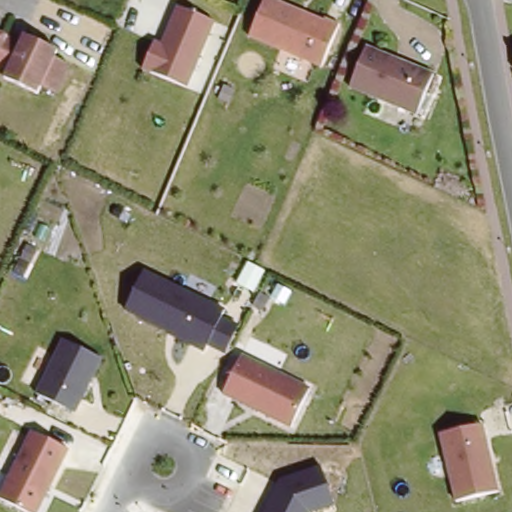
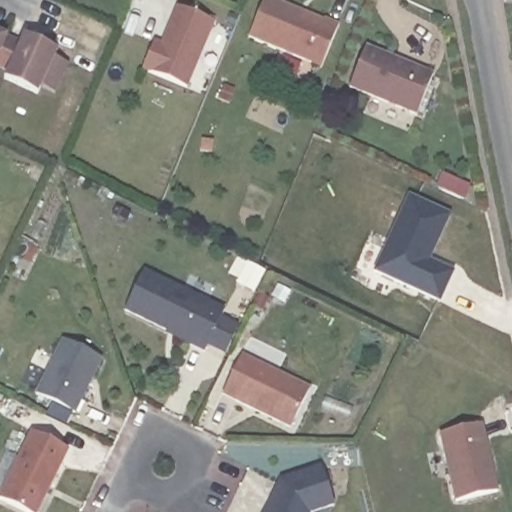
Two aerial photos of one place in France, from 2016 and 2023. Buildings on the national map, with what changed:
unchanged [(263,0),(266,0),(330,29),(313,69),(246,40),(263,0)]
unchanged [(210,23),(181,88),(137,70),(150,42),(156,45),(173,7),(210,23)]
unchanged [(16,41),(20,35),(53,50),(50,57),(63,64),(50,92),(36,86),(32,94),(0,78),(0,77),(2,70),(0,69),(0,34),(16,41)]
unchanged [(430,82),(413,120),(345,90),(361,51),(430,82)]
new [(376,271),(410,195),(453,215),(433,260),(457,270),(441,301),(376,271)]
unchanged [(124,311),(145,265),(227,306),(207,350),(124,311)]
unchanged [(102,357),(75,411),(35,391),(62,337),(102,357)]
unchanged [(242,351),(311,385),(290,426),(222,393),(242,351)]
unchanged [(438,432),(483,422),(500,491),(454,501),(438,432)]
unchanged [(38,512),(28,512),(0,498),(0,491),(31,428),(70,447),(38,512)]
unchanged [(323,463),(334,505),(312,512),(264,512),(280,476),(323,463)]

